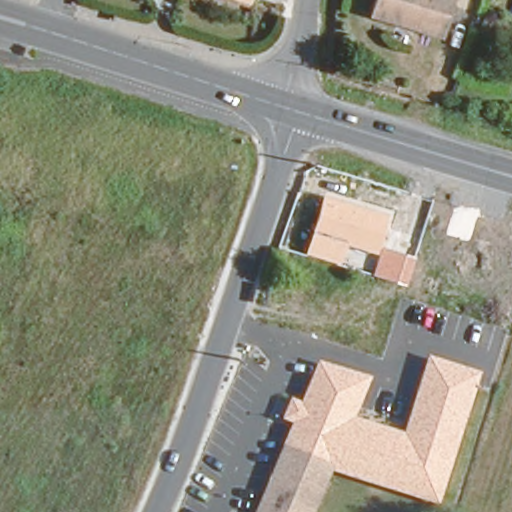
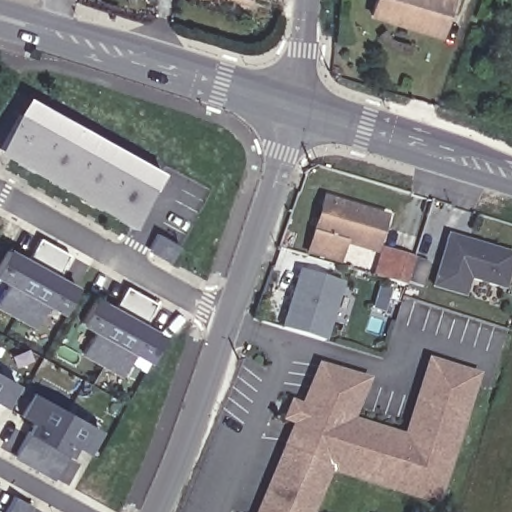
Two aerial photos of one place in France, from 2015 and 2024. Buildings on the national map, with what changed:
unchanged [(368,10),(372,0),(449,0),(437,34),(368,10)]
new [(161,173),(129,226),(0,153),(0,143),(26,96),(161,173)]
unchanged [(338,236),(330,257),(302,248),(321,194),(387,214),(376,248),(338,236)]
new [(431,287),(447,232),(512,252),(512,263),(504,289),(470,279),(465,295),(431,287)]
new [(79,286),(64,314),(49,305),(35,328),(0,309),(0,297),(8,283),(0,278),(0,261),(7,247),(26,258),(38,237),(68,254),(59,275),(79,286)]
unchanged [(407,287),(371,276),(381,245),(415,255),(407,287)]
new [(325,340),(279,327),(297,269),(343,282),(325,340)]
demolished [(329,341),(343,304),(366,311),(378,277),(404,285),(379,357),(329,341)]
demolished [(275,301),(282,283),(312,292),(304,311),(275,301)]
new [(83,352),(93,332),(80,324),(96,297),(114,307),(124,286),(154,303),(145,323),(164,334),(149,361),(136,354),(123,375),(83,352)]
unchanged [(289,398),(301,403),(319,362),(371,379),(355,418),(402,434),(426,355),(479,372),(439,505),(331,472),(325,467),(282,451),(291,426),(280,421),(289,398)]
new [(4,407),(0,405),(0,372),(19,381),(4,407)]
new [(26,431),(30,421),(18,414),(31,391),(99,430),(86,452),(75,446),(70,456),(54,480),(14,457),(26,431)]
unchanged [(282,451),(325,467),(305,512),(248,512),(276,448),(282,451)]
new [(4,512),(12,496),(33,505),(29,512),(4,512)]

